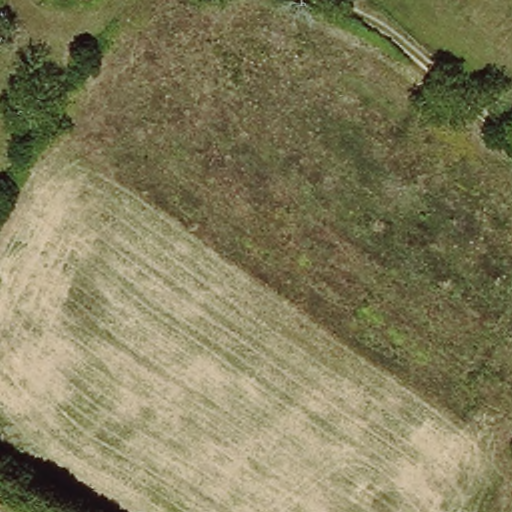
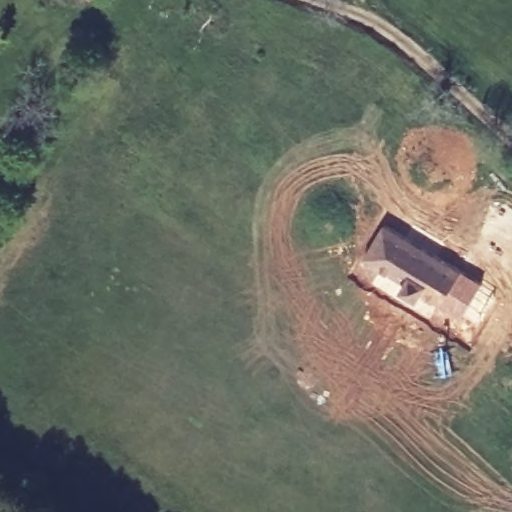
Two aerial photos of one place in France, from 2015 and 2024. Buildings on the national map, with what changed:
new [(384,223),(454,265),(482,283),(461,318),(433,304),(429,310),(399,291),(394,298),(370,285),(379,270),(363,261),(384,223)]

